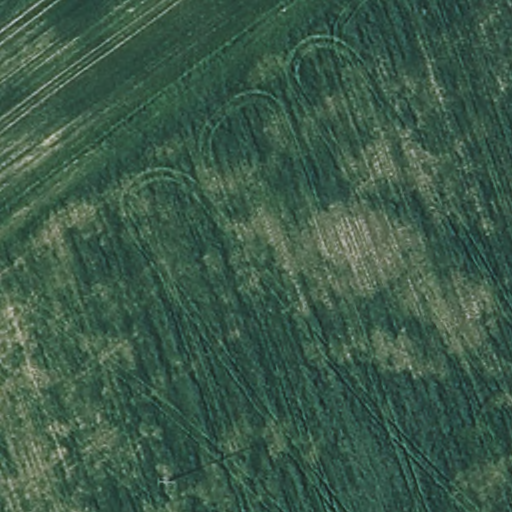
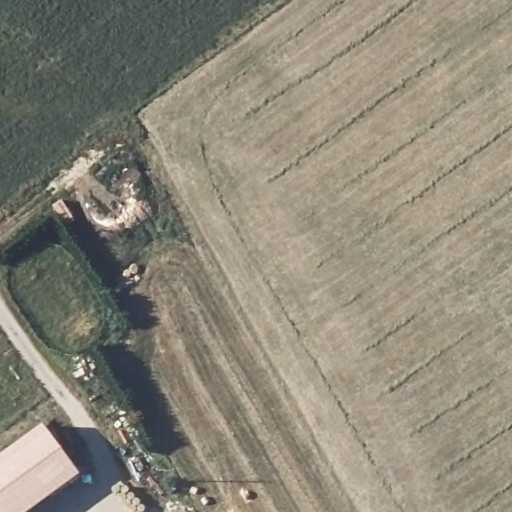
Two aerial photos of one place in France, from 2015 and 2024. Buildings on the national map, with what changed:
new [(34,512),(0,512),(0,458),(42,428),(79,480),(34,512)]

